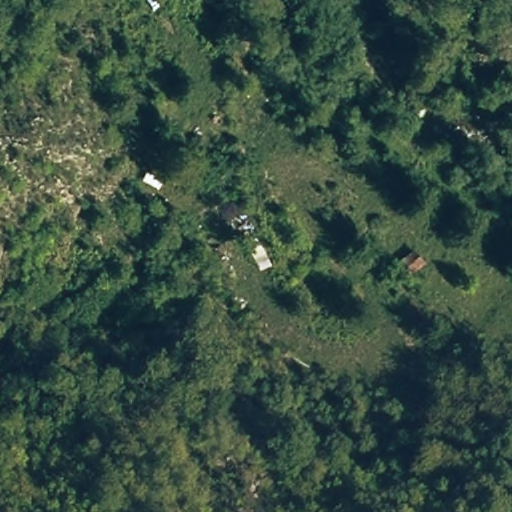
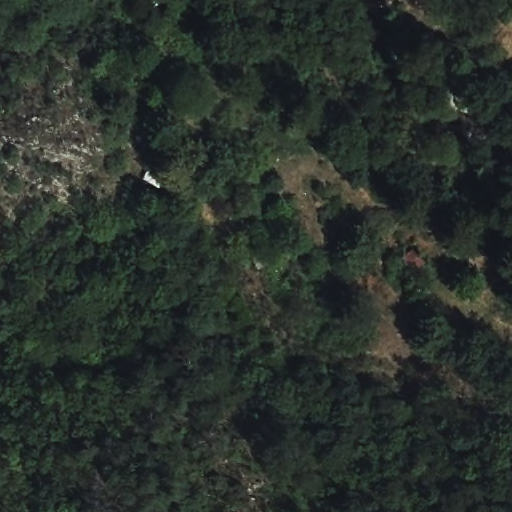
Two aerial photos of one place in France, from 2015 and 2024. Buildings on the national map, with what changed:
unchanged [(422,262),(407,275),(394,261),(413,248),(422,262)]

